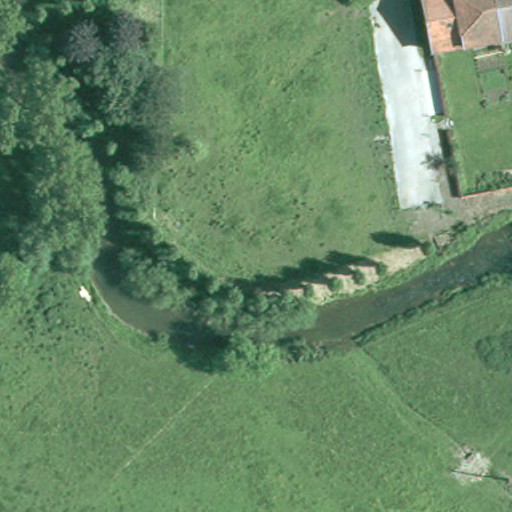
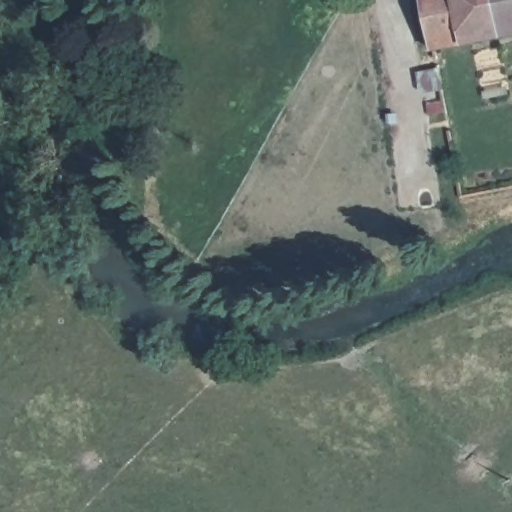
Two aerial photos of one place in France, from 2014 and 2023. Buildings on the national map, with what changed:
unchanged [(433,45),(425,0),(512,0),(512,31),(433,45)]

